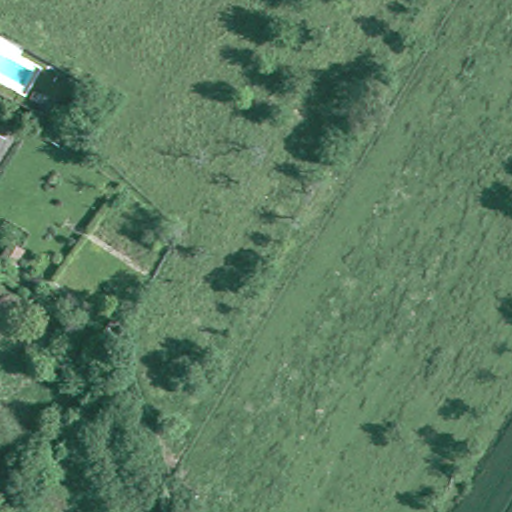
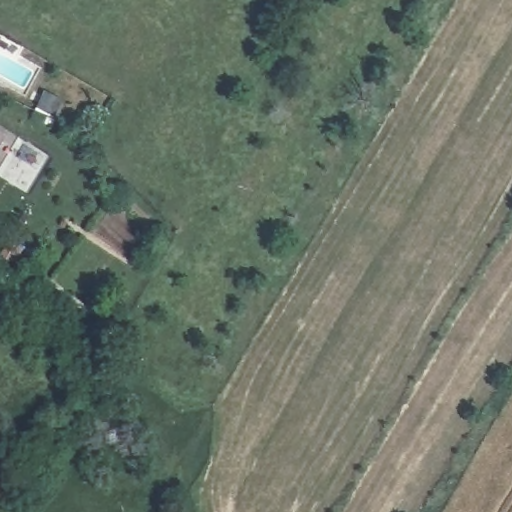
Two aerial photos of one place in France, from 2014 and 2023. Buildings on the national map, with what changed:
unchanged [(6,141),(0,151),(0,138),(6,141)]

